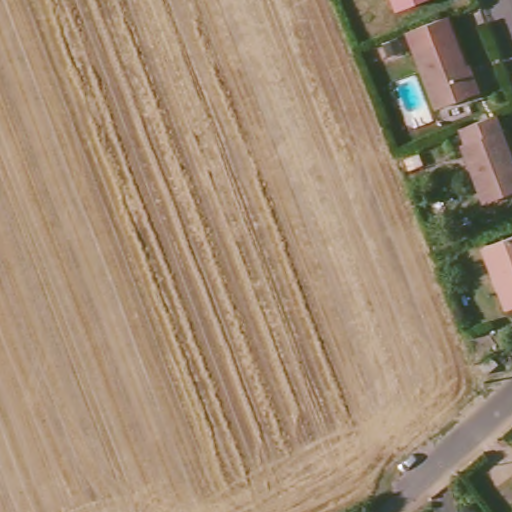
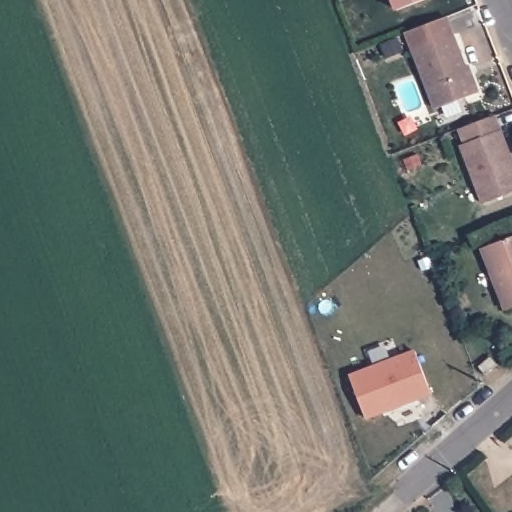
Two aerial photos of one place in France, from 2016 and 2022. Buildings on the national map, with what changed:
unchanged [(402,3),(400,0),(410,0),(402,3)]
unchanged [(452,16),(483,94),(444,109),(412,32),(452,16)]
unchanged [(397,44),(400,55),(387,59),(383,49),(397,44)]
unchanged [(512,146),(512,192),(490,200),(472,155),(474,153),(464,125),(499,112),(512,146)]
unchanged [(484,244),(512,234),(512,308),(508,310),(484,244)]
new [(368,419),(351,376),(416,351),(432,395),(368,419)]
unchanged [(482,370),(491,363),(496,373),(488,380),(482,370)]

